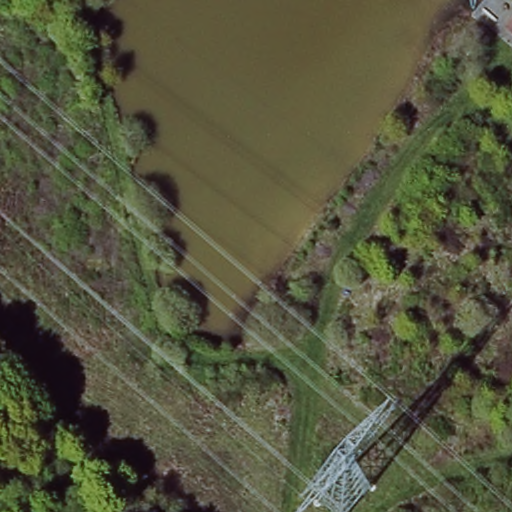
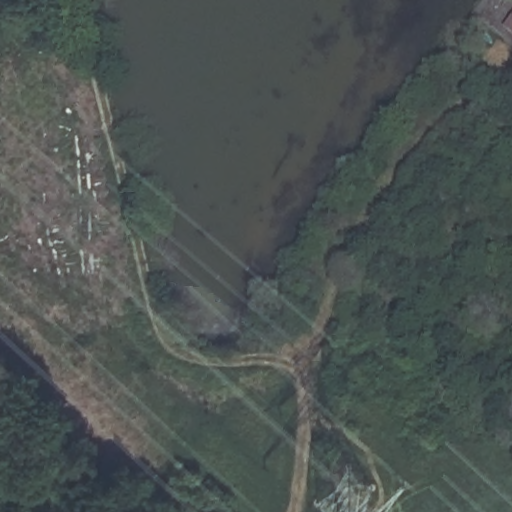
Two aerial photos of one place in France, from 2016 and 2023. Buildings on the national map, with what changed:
unchanged [(512,19),(512,35),(505,28),(512,19)]

